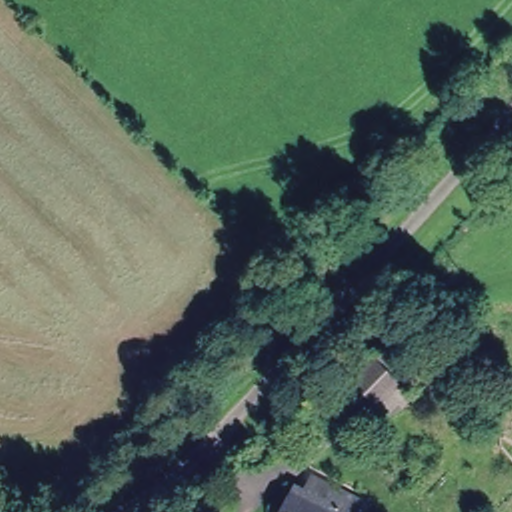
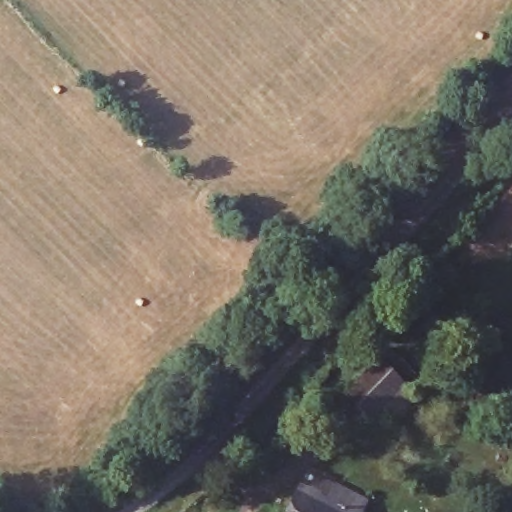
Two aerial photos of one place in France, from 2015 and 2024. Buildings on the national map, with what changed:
unchanged [(368,369),(378,359),(402,382),(392,392),(358,428),(333,406),(368,369)]
unchanged [(297,486),(324,499),(334,480),(362,492),(352,512),(284,512),(297,486)]

